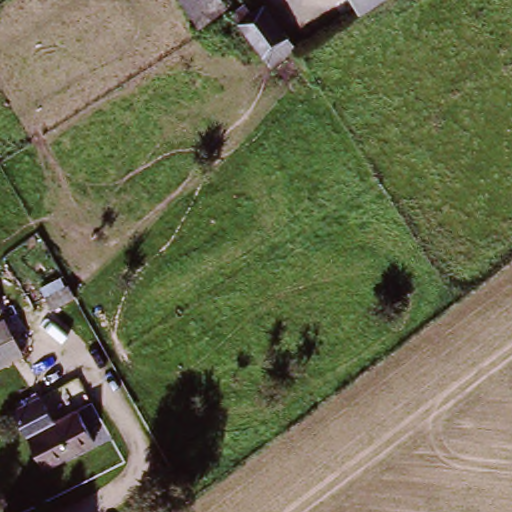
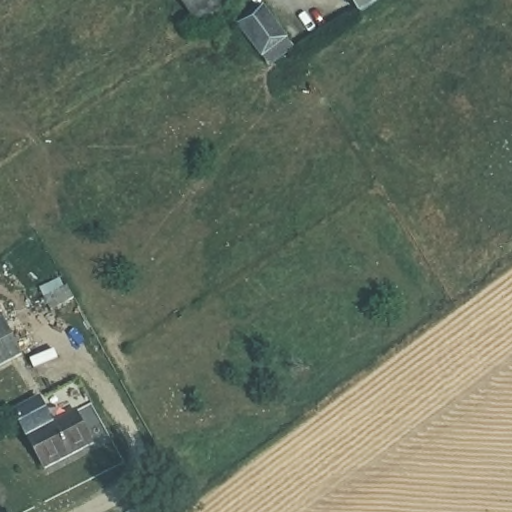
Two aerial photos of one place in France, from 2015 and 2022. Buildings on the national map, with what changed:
unchanged [(182,0),(217,0),(220,6),(196,22),(182,0)]
unchanged [(270,67),(238,20),(231,10),(244,0),(249,0),(255,8),(262,2),(295,49),(270,67)]
unchanged [(351,0),(384,0),(360,15),(351,0)]
unchanged [(65,291),(57,280),(77,267),(85,278),(65,291)]
unchanged [(0,365),(0,317),(21,350),(0,365)]
unchanged [(92,436),(44,465),(10,408),(40,392),(55,417),(75,407),(92,436)]

